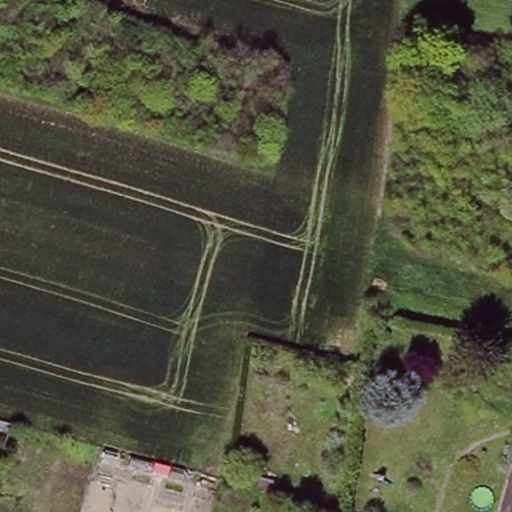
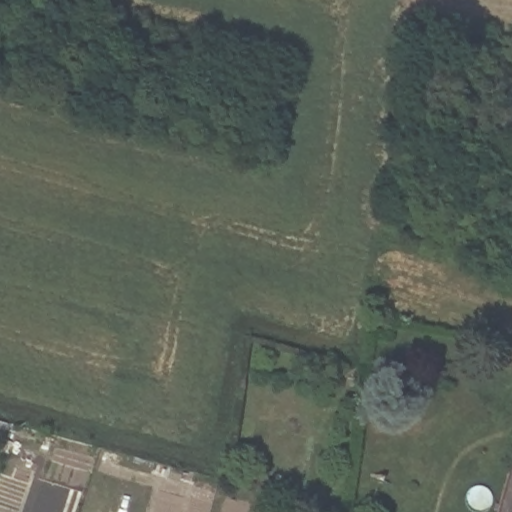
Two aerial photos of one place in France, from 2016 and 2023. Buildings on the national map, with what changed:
unchanged [(152,465),(166,468),(163,478),(149,475),(152,465)]

